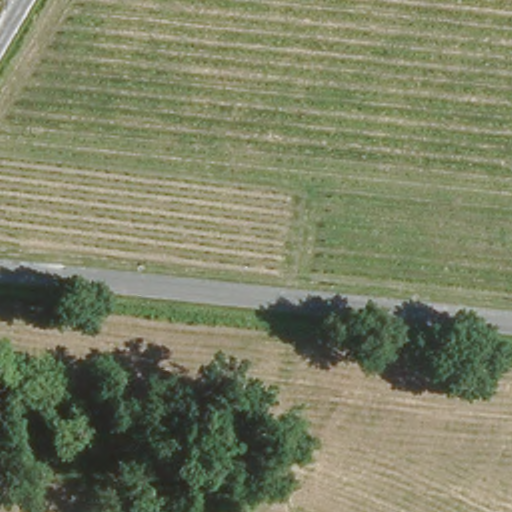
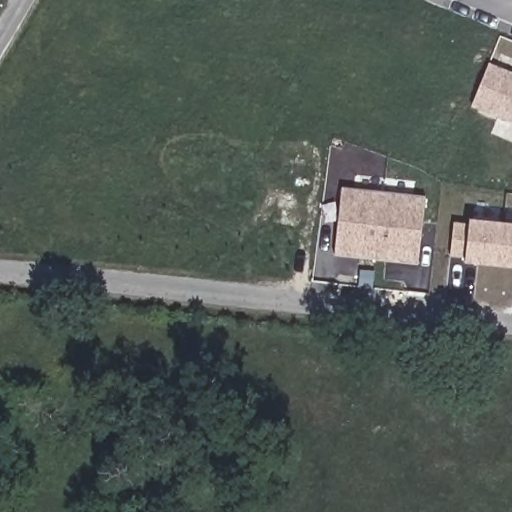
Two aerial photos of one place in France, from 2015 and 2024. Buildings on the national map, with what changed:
new [(489,65),(512,74),(512,121),(472,105),(489,65)]
new [(342,187),(425,196),(418,263),(335,254),(342,187)]
new [(470,225),(471,220),(512,224),(512,267),(466,262),(467,257),(451,255),(455,223),(470,225)]

